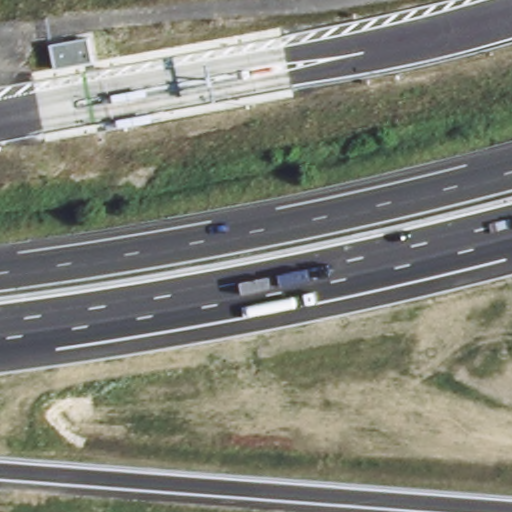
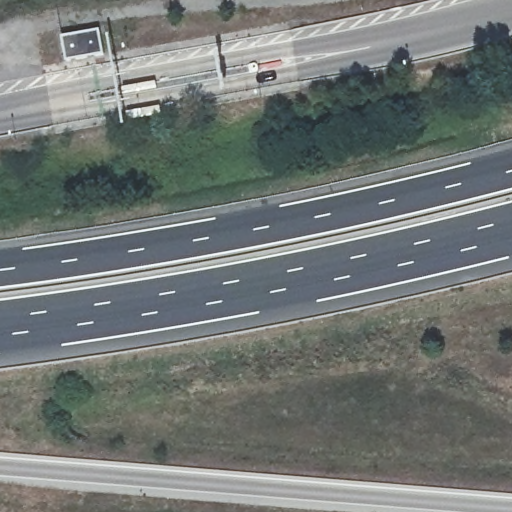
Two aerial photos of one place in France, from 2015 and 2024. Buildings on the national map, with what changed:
unchanged [(104,55),(69,61),(64,38),(100,32),(104,55)]

